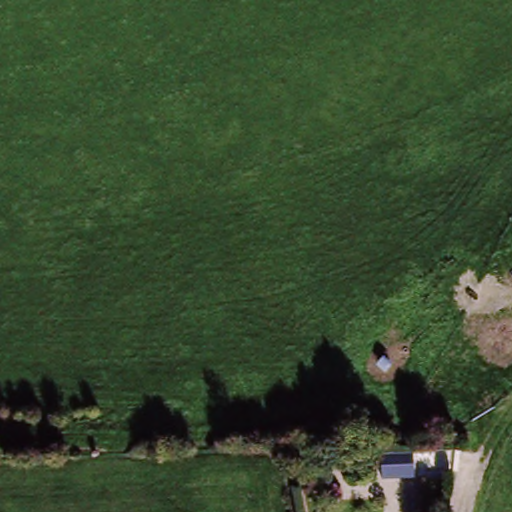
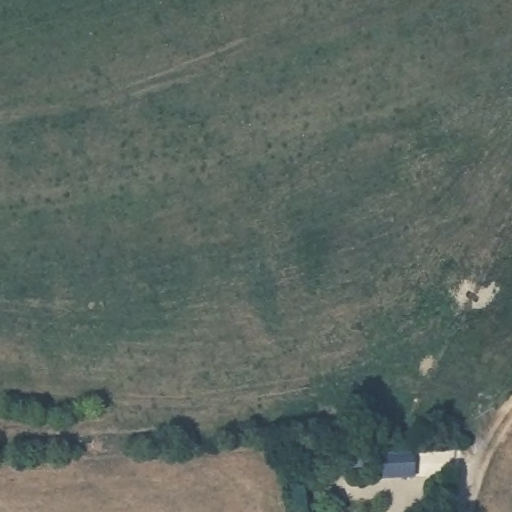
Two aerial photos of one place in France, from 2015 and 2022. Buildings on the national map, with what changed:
unchanged [(415,480),(383,482),(383,453),(413,452),(415,480)]

